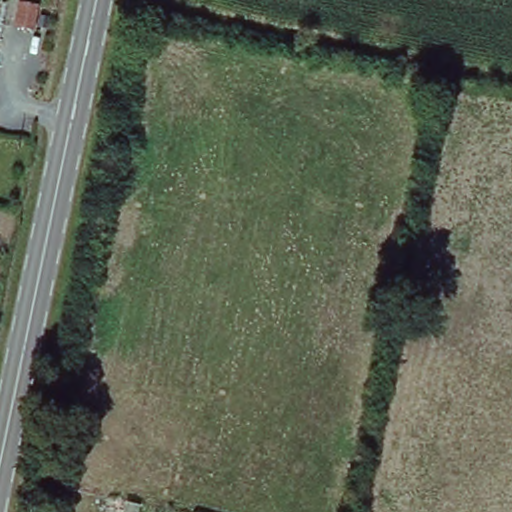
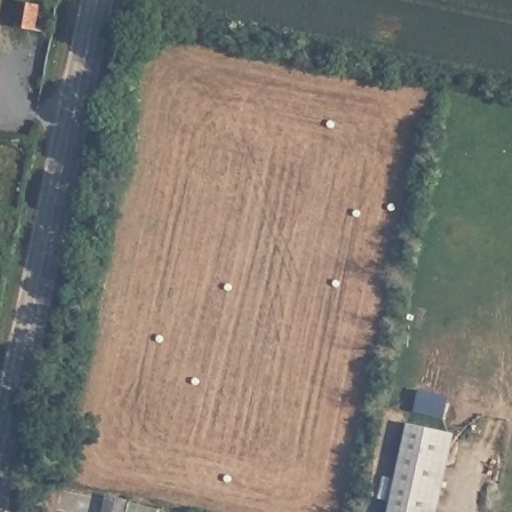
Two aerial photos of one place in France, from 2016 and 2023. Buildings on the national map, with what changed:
unchanged [(18,2),(40,6),(34,59),(11,55),(18,2)]
new [(455,437),(440,512),(389,512),(407,427),(455,437)]

